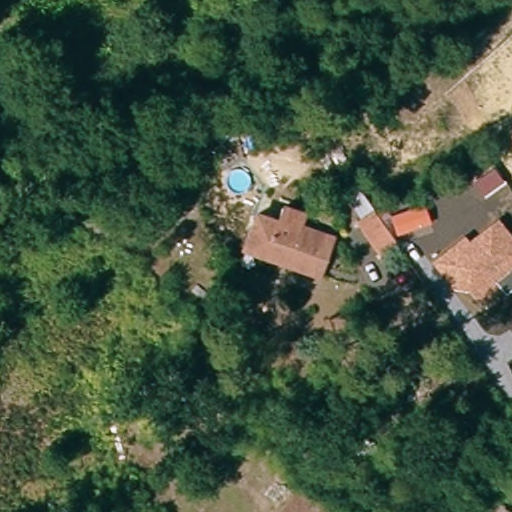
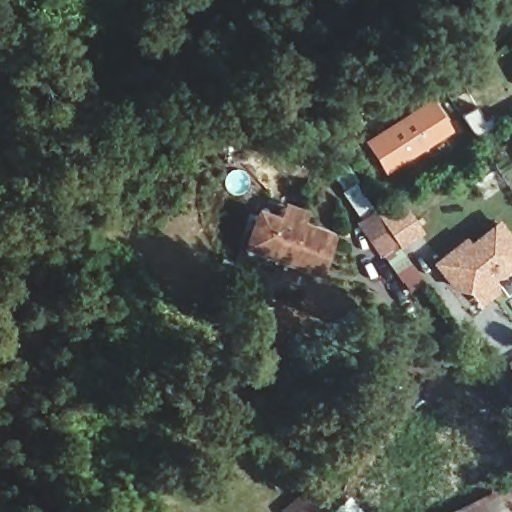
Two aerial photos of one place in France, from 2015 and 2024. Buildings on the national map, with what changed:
new [(430,97),(454,132),(388,176),(365,141),(430,97)]
new [(479,105),(493,128),(476,139),(461,115),(479,105)]
unchanged [(223,136),(218,117),(260,107),(265,127),(223,136)]
unchanged [(398,245),(381,258),(354,222),(361,217),(347,197),(358,187),(372,209),(398,245)]
new [(428,200),(434,218),(400,231),(393,212),(428,200)]
unchanged [(273,259),(248,250),(260,216),(280,222),(285,208),(304,215),(306,216),(302,227),(335,239),(324,270),(321,277),(273,259)]
unchanged [(497,219),(512,237),(512,290),(506,295),(497,285),(476,302),(467,291),(452,292),(431,262),(464,235),(470,241),(497,219)]
unchanged [(328,512),(292,512),(312,494),(328,512)]
unchanged [(493,494),(510,512),(454,512),(493,494)]

